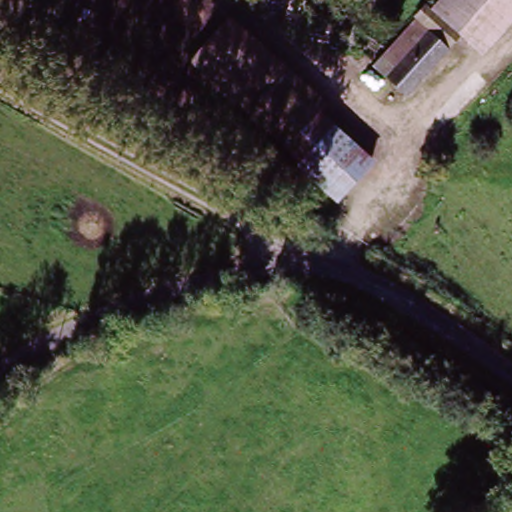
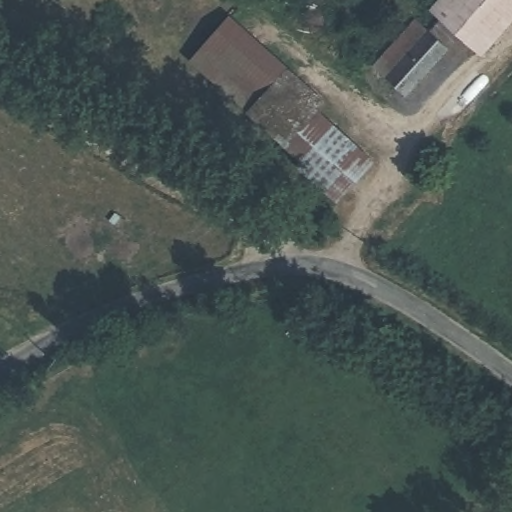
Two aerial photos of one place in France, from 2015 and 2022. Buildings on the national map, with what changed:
unchanged [(512,0),(472,46),(430,8),(437,0),(512,0)]
unchanged [(427,11),(454,35),(444,49),(416,23),(427,11)]
unchanged [(325,104),(314,119),(368,166),(335,202),(189,61),(231,18),(325,104)]
unchanged [(388,51),(412,23),(436,46),(441,51),(419,75),(401,95),(371,68),(388,51)]

